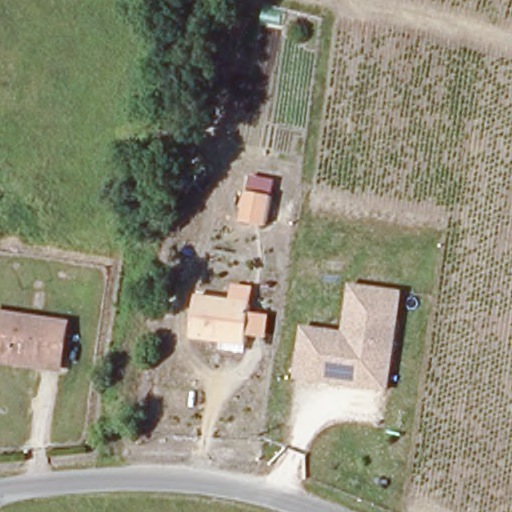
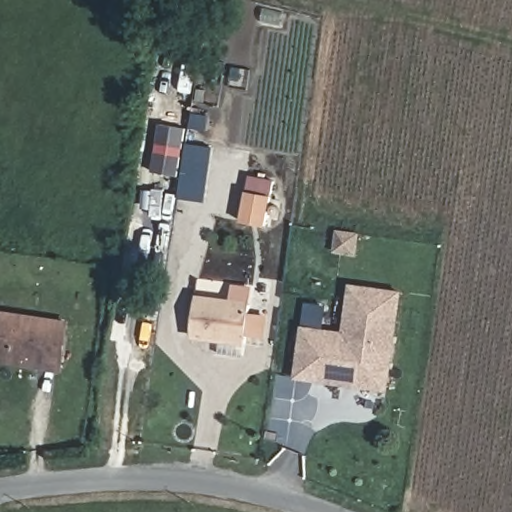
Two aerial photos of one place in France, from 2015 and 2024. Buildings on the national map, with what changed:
new [(151,172),(160,124),(187,128),(179,175),(151,172)]
new [(188,144),(213,147),(204,202),(179,199),(188,144)]
unchanged [(241,191),(269,196),(262,231),(234,225),(241,191)]
unchanged [(350,287),(402,293),(389,391),(296,379),(303,326),(342,331),(350,287)]
unchanged [(186,292),(250,300),(245,343),(180,336),(186,292)]
unchanged [(63,321),(59,366),(0,360),(0,315),(63,321)]

